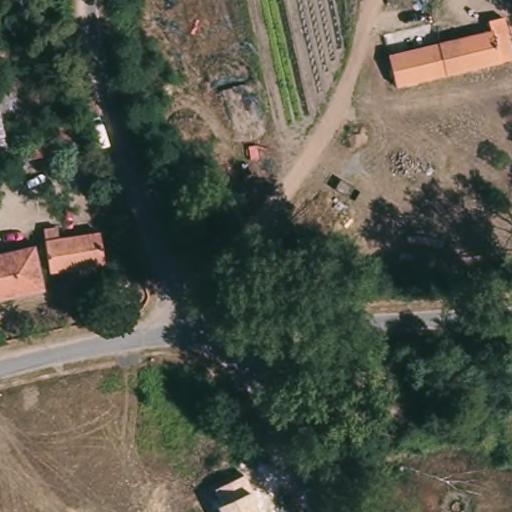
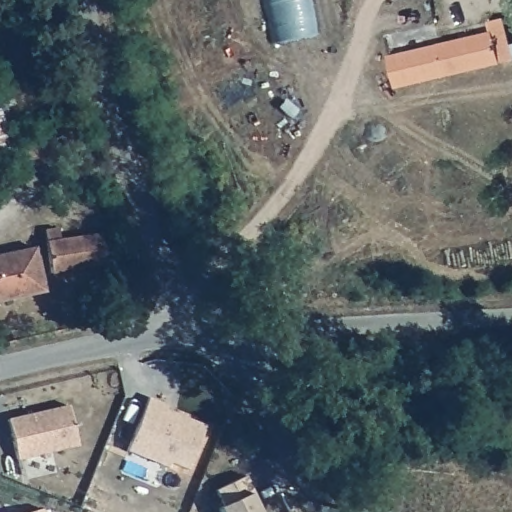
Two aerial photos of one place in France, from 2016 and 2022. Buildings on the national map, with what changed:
unchanged [(398,61),(495,36),(494,26),(509,22),(512,34),(512,69),(456,82),(404,95),(398,61)]
unchanged [(0,173),(0,103),(13,171),(0,173)]
unchanged [(21,165),(20,147),(55,141),(55,129),(78,126),(82,154),(21,165)]
unchanged [(42,232),(63,227),(67,245),(98,240),(105,270),(53,280),(42,232)]
unchanged [(0,305),(0,258),(35,252),(47,296),(0,305)]
new [(147,393),(165,401),(163,405),(204,422),(186,465),(169,458),(167,463),(126,447),(147,393)]
new [(66,403),(77,443),(16,458),(5,418),(66,403)]
unchanged [(219,509),(212,492),(243,477),(250,493),(257,512),(220,512),(219,509)]
new [(41,506),(43,512),(21,512),(41,506)]

